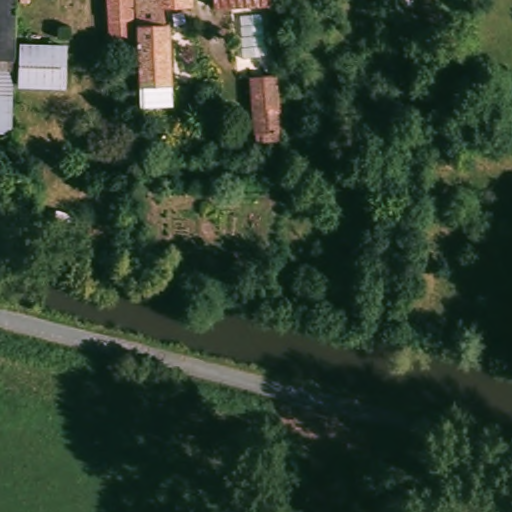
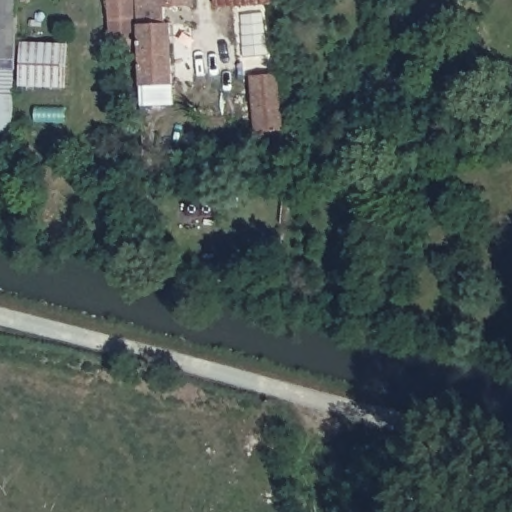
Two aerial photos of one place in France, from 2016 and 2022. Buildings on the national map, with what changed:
unchanged [(21,51),(21,62),(20,70),(0,70),(0,0),(22,0),(21,39),(21,40),(21,51)]
unchanged [(37,4),(26,4),(26,0),(36,0),(37,4)]
unchanged [(137,6),(139,36),(139,46),(117,47),(112,0),(137,0),(137,6)]
unchanged [(179,101),(146,102),(146,84),(146,74),(144,7),(144,0),(197,0),(197,2),(171,5),(172,21),(177,25),(179,82),(179,87),(179,101)]
unchanged [(272,5),(215,7),(215,0),(271,0),(272,5)]
unchanged [(71,47),(69,88),(27,86),(28,46),(71,47)]
unchanged [(2,103),(0,103),(0,70),(20,70),(19,106),(19,131),(18,132),(18,135),(1,135),(2,103)]
unchanged [(286,132),(255,136),(247,76),(278,71),(286,132)]

